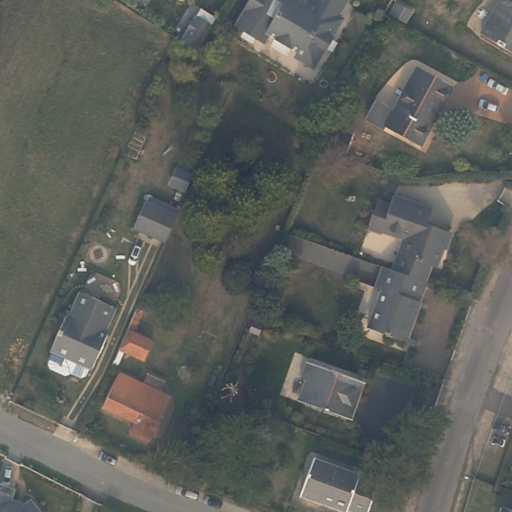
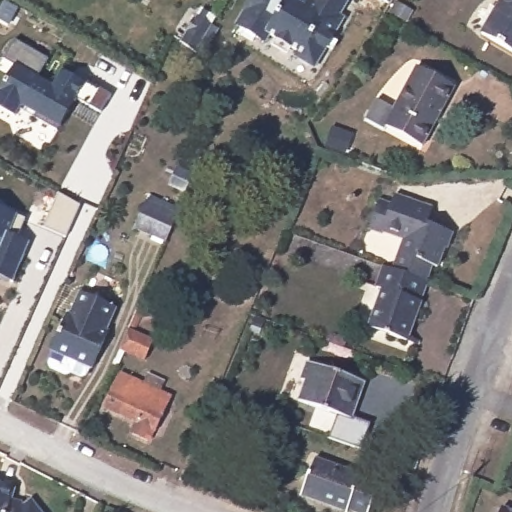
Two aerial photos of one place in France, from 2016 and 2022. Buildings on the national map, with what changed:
unchanged [(314,0),(339,0),(347,5),(339,19),(343,21),(316,66),(309,66),(299,60),(297,52),(271,36),(265,44),(237,25),(252,0),(308,0),(313,3),(314,0)]
unchanged [(498,0),(512,0),(512,48),(481,30),(498,0)]
unchanged [(197,51),(180,41),(197,14),(214,25),(197,51)]
new [(36,75),(54,85),(63,70),(85,83),(87,80),(111,95),(100,112),(77,98),(61,129),(22,107),(16,116),(0,107),(0,89),(14,65),(4,60),(15,40),(48,59),(36,75)]
unchanged [(383,119),(415,60),(453,80),(421,139),(383,119)]
new [(42,229),(58,192),(80,205),(64,238),(42,229)]
unchanged [(406,250),(412,235),(388,225),(386,231),(374,226),(384,199),(397,204),(400,194),(437,207),(431,222),(454,231),(441,266),(434,264),(428,280),(396,267),(402,250),(406,250)]
unchanged [(170,240),(138,226),(150,199),(182,213),(170,240)]
new [(17,214),(25,218),(17,235),(29,242),(12,282),(0,278),(0,206),(17,214)]
unchanged [(385,286),(378,284),(386,264),(396,267),(428,280),(430,281),(407,339),(389,331),(370,325),(372,321),(385,286)]
unchanged [(75,298),(80,286),(92,291),(115,301),(101,333),(104,335),(92,362),(52,345),(67,310),(70,310),(75,298)]
unchanged [(145,297),(150,300),(141,320),(161,328),(154,346),(129,336),(136,318),(145,297)]
unchanged [(344,416),(299,400),(307,379),(301,377),(308,361),(366,383),(360,399),(352,419),(344,416)]
unchanged [(164,381),(159,392),(170,397),(155,432),(153,431),(149,443),(131,435),(136,425),(104,410),(119,375),(143,385),(148,375),(164,381)]
unchanged [(299,496),(313,458),(379,483),(368,512),(356,512),(348,508),(346,512),(340,512),(299,496)]
unchanged [(30,491),(47,512),(0,512),(0,476),(13,479),(10,492),(24,496),(30,491)]
unchanged [(494,506),(510,512),(492,512),(494,506)]

